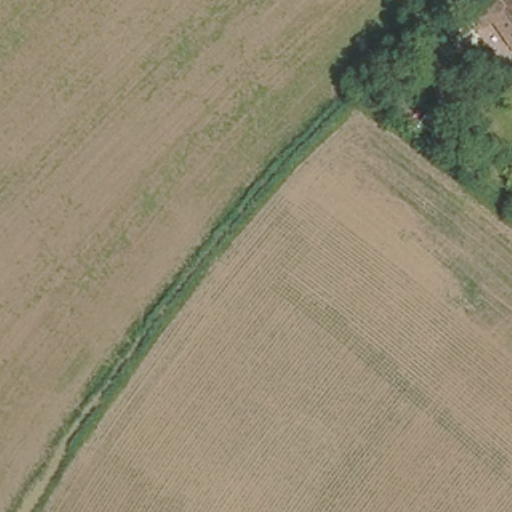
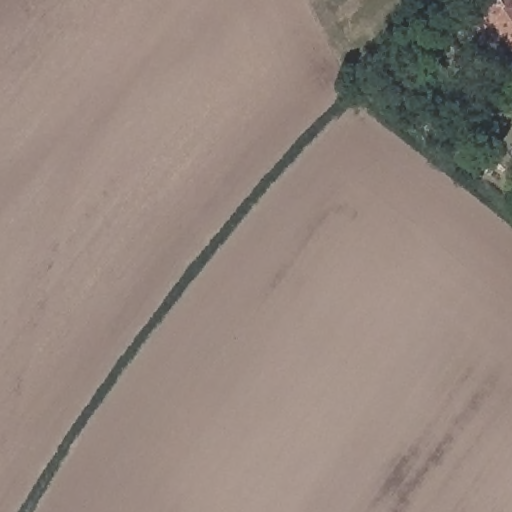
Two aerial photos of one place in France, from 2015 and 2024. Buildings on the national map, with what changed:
unchanged [(510,60),(477,15),(498,0),(512,0),(512,59),(510,60)]

